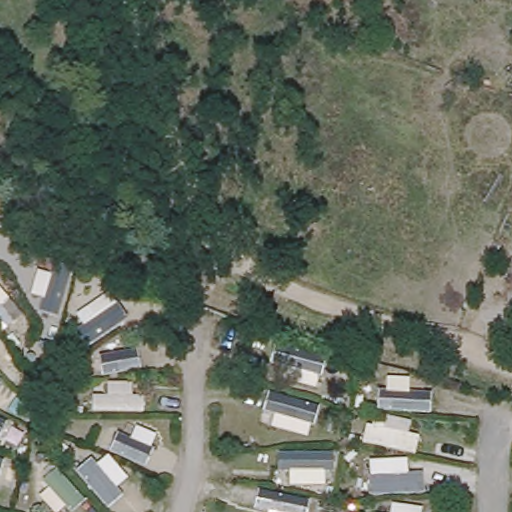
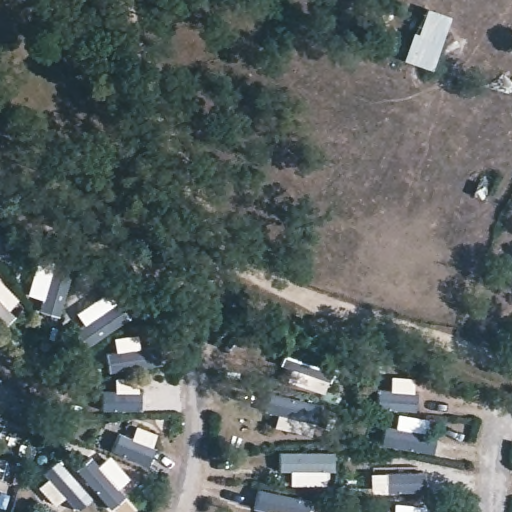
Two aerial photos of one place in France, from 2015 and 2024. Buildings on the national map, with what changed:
new [(433,69),(404,60),(413,31),(417,33),(424,6),(449,14),(433,69)]

